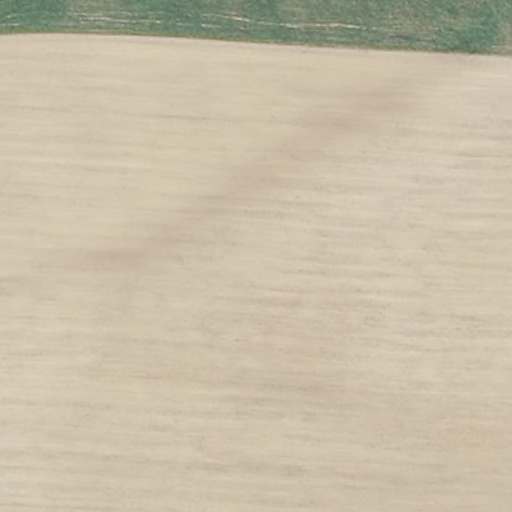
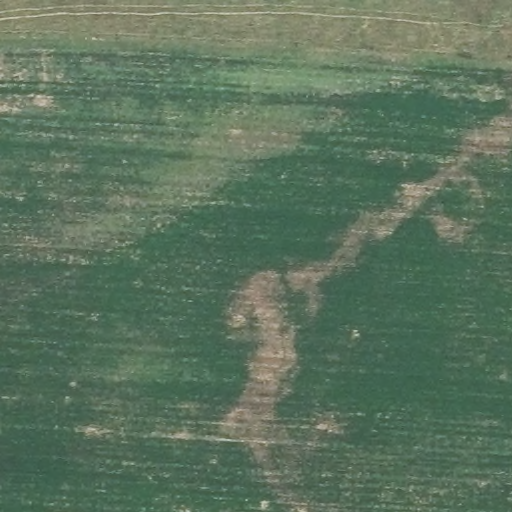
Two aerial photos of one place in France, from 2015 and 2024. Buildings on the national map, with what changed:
[]

